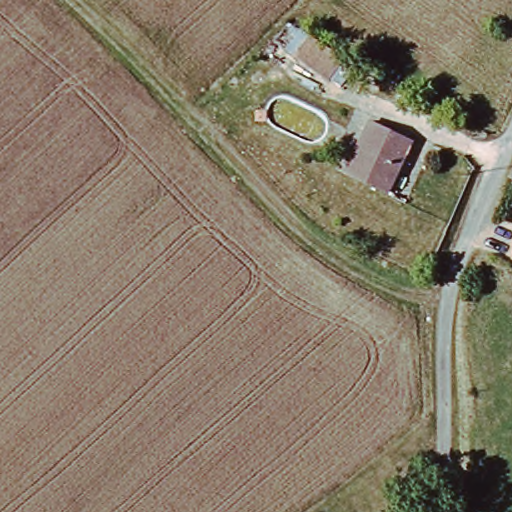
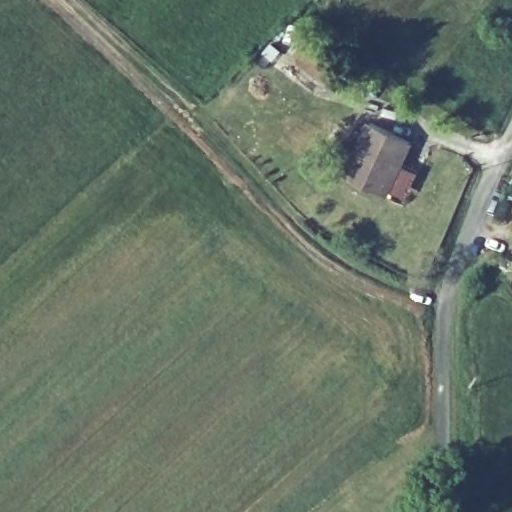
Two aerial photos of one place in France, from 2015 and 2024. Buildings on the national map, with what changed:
unchanged [(291,60),(301,39),(335,56),(325,76),(291,60)]
unchanged [(408,145),(385,195),(346,178),(356,153),(367,125),(379,131),(408,145)]
unchanged [(509,253),(512,246),(512,255),(509,253)]

